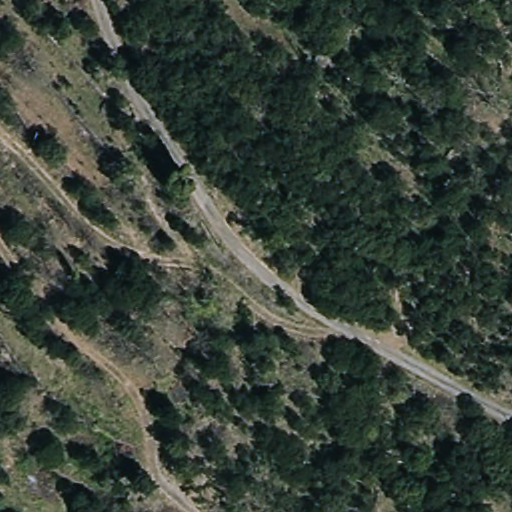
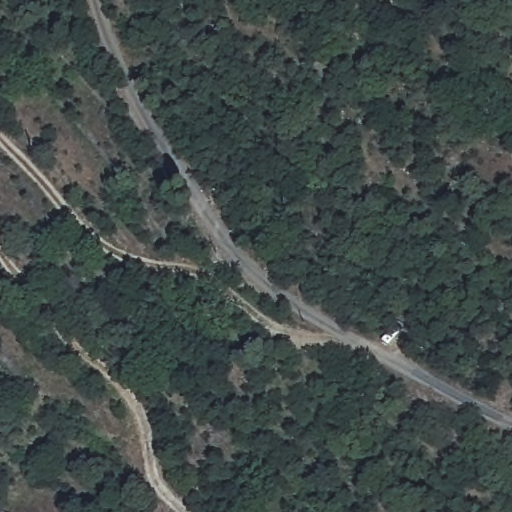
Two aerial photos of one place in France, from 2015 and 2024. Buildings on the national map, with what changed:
[]

